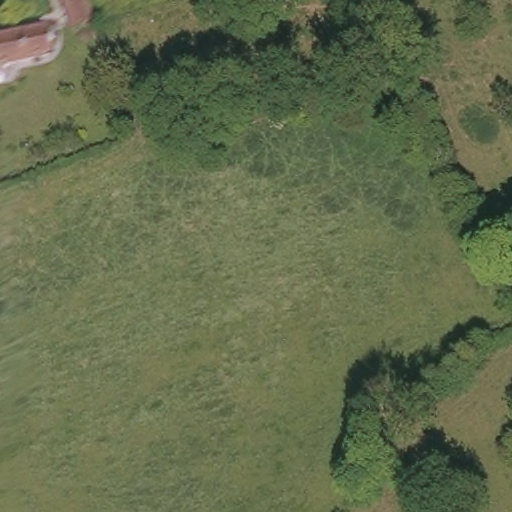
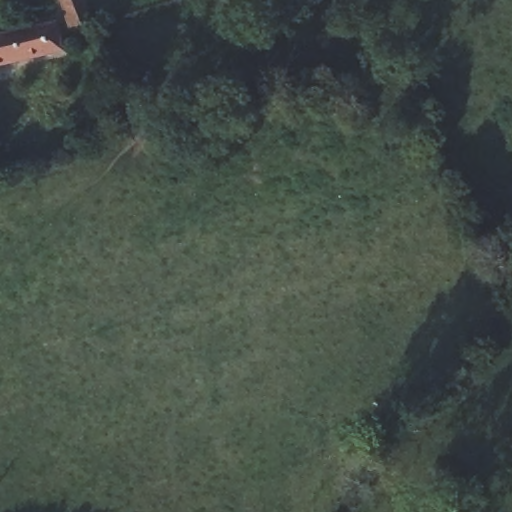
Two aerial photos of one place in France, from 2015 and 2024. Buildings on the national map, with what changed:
unchanged [(88,17),(66,25),(60,0),(83,0),(88,17)]
unchanged [(38,34),(40,41),(44,57),(0,68),(0,43),(38,34)]

